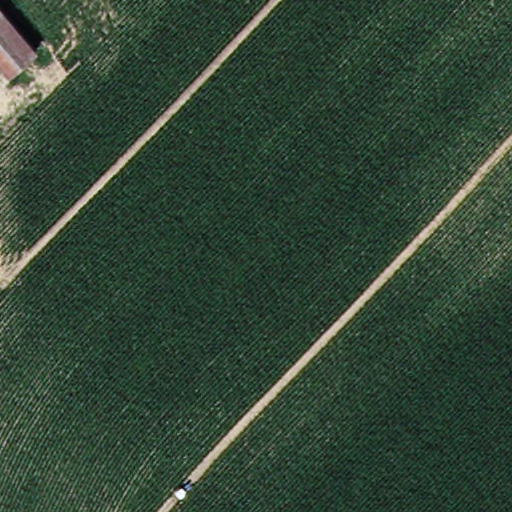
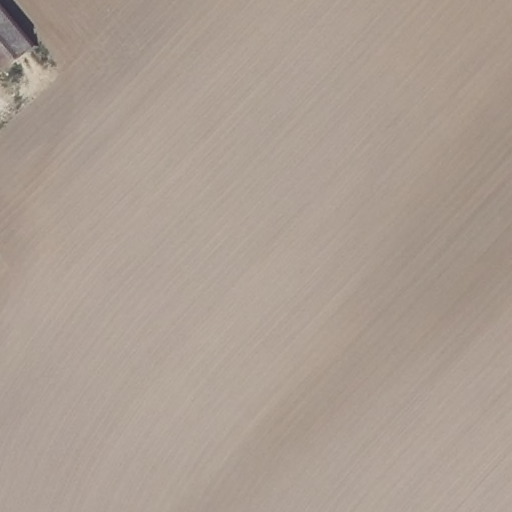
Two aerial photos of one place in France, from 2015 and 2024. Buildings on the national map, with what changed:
unchanged [(0,64),(0,11),(36,45),(9,72),(0,64)]

